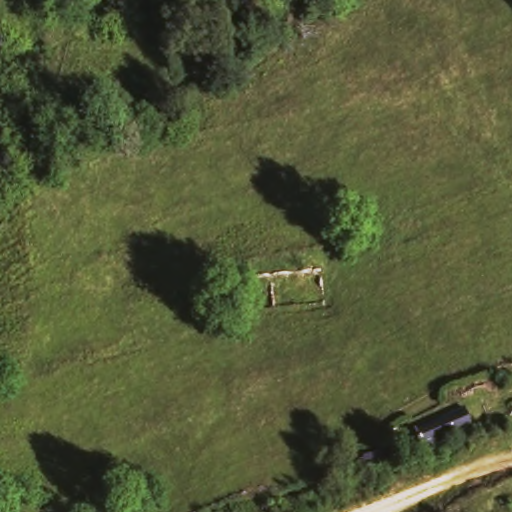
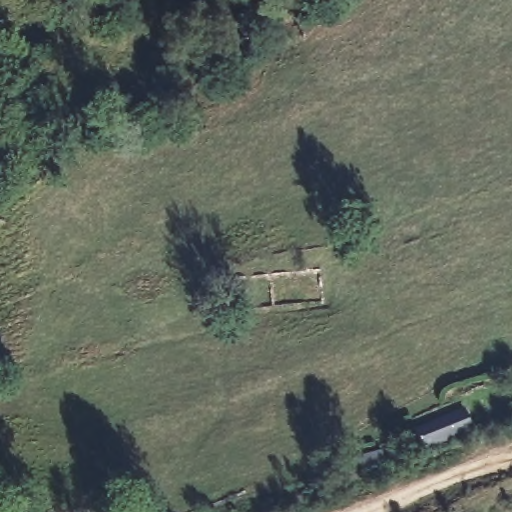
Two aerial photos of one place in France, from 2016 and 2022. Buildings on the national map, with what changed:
unchanged [(416,423),(435,418),(472,409),(478,438),(424,452),(416,423)]

